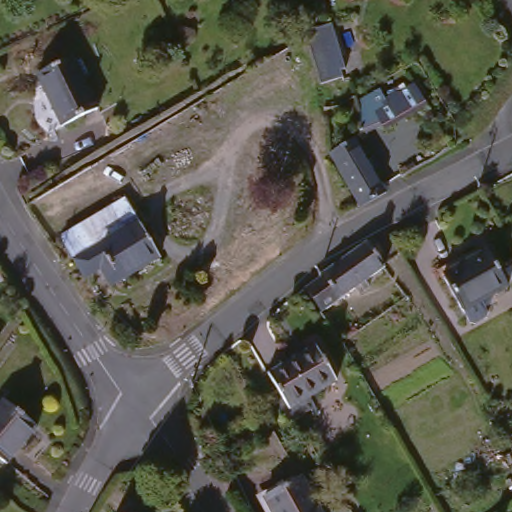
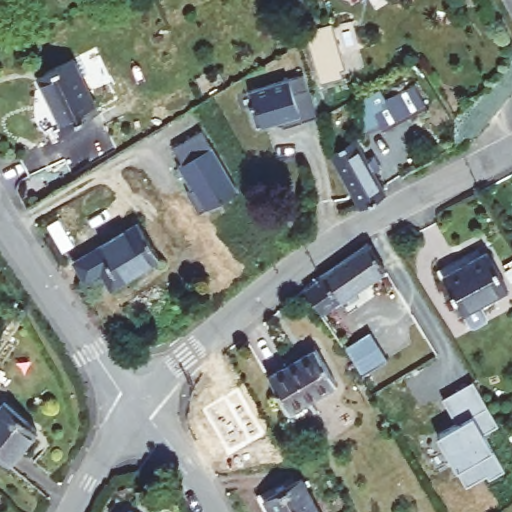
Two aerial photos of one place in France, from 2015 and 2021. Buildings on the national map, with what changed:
unchanged [(329,22),(346,78),(323,86),(309,41),(304,30),(320,25),(329,22)]
unchanged [(60,130),(43,121),(46,104),(60,97),(49,72),(84,55),(109,107),(60,130)]
new [(256,107),(251,92),(304,74),(309,88),(294,94),(303,120),(284,127),(282,120),(257,128),(251,109),(256,107)]
unchanged [(382,129),(379,125),(362,134),(358,109),(368,104),(370,107),(411,86),(422,108),(382,129)]
new [(201,132),(234,188),(199,211),(188,192),(193,190),(178,166),(183,163),(174,148),(201,132)]
unchanged [(358,140),(387,195),(361,209),(332,151),(358,140)]
demolished [(103,189),(37,228),(24,207),(30,203),(91,168),(103,189)]
unchanged [(76,261),(62,237),(126,200),(141,224),(76,261)]
unchanged [(112,289),(103,273),(86,282),(76,261),(141,224),(163,262),(112,289)]
unchanged [(392,263),(328,308),(312,284),(329,273),(327,268),(373,236),(392,263)]
unchanged [(469,313),(446,273),(493,247),(512,280),(512,288),(469,313)]
unchanged [(292,410),(286,400),(269,373),(318,345),(339,383),(311,399),(292,410)]
unchanged [(0,411),(9,402),(40,429),(8,465),(0,459),(0,411)]
new [(487,409),(498,428),(484,436),(504,472),(489,481),(487,477),(467,489),(437,439),(487,409)]
unchanged [(299,479),(317,512),(268,512),(262,498),(299,479)]

